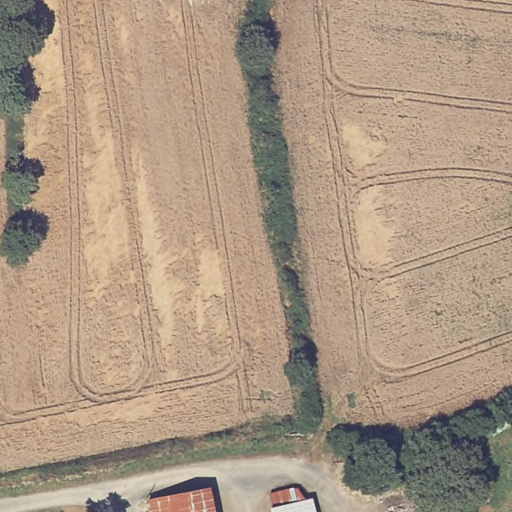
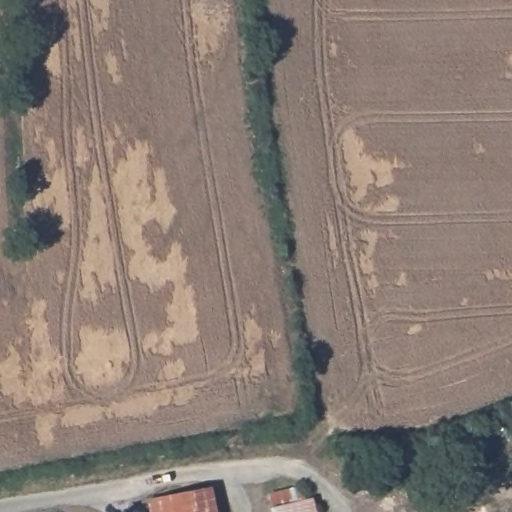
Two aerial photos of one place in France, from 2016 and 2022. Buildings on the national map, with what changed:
unchanged [(214,512),(152,512),(150,497),(209,487),(214,512)]
unchanged [(312,501),(315,512),(272,512),(271,511),(312,501)]

